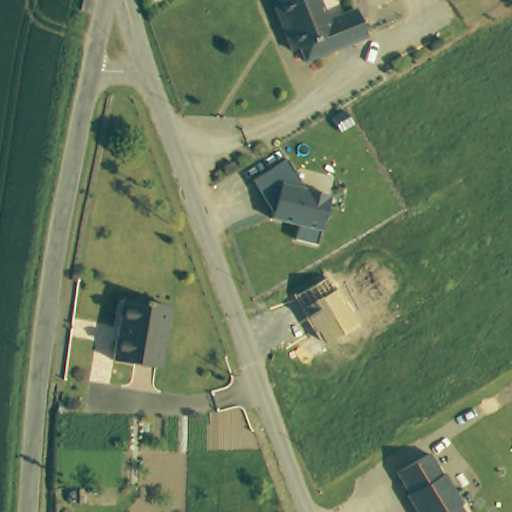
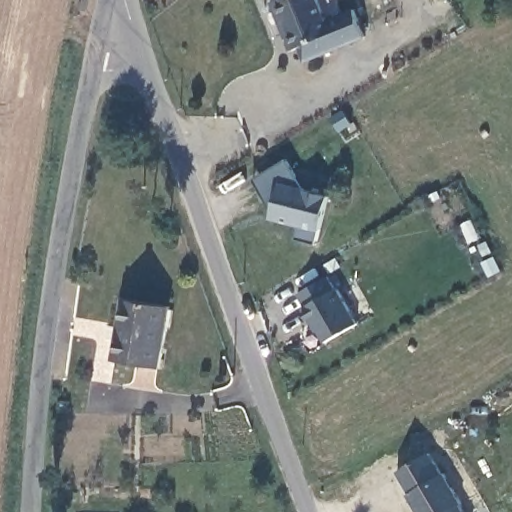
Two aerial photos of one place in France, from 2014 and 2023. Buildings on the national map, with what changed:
unchanged [(368,42),(305,67),(301,57),(291,60),(283,37),(291,34),(280,6),(294,0),(320,0),(331,25),(357,14),(368,42)]
unchanged [(272,213),(254,179),(286,159),(303,189),(330,196),(331,196),(317,243),(294,239),(297,226),(270,219),(272,213)]
unchanged [(328,275),(335,289),(340,286),(360,324),(322,346),(303,310),(295,294),(328,275)]
unchanged [(119,299),(164,304),(157,366),(112,363),(119,299)]
unchanged [(466,512),(418,512),(405,491),(410,489),(395,468),(429,449),(441,471),(444,470),(463,503),(461,504),(466,512)]

